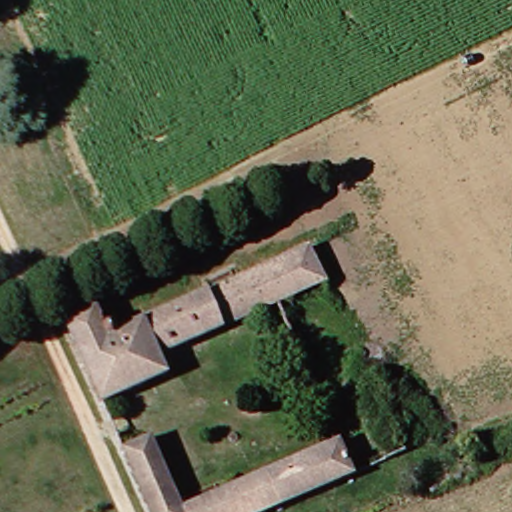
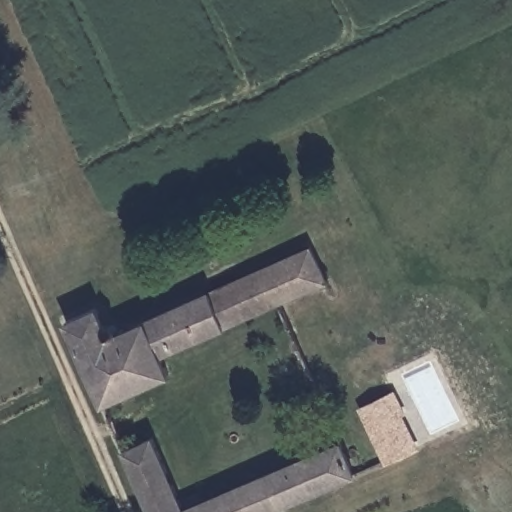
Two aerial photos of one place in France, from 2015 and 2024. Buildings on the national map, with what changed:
unchanged [(173,376),(105,407),(67,325),(100,311),(109,329),(120,323),(124,332),(320,237),(335,291),(165,360),(173,376)]
demolished [(385,377),(418,450),(391,461),(359,389),(385,377)]
new [(393,390),(421,447),(385,465),(357,407),(372,400),(393,390)]
unchanged [(346,439),(361,474),(277,512),(155,512),(127,450),(156,437),(187,508),(346,439)]

